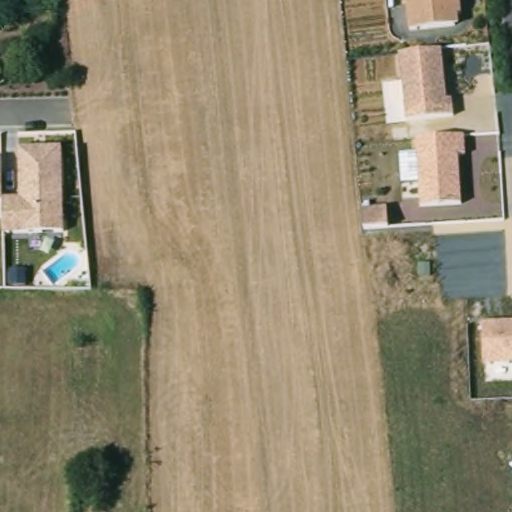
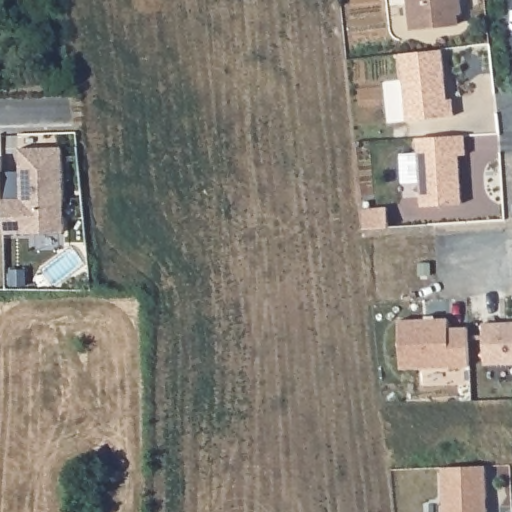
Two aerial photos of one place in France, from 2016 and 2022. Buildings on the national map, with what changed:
unchanged [(459,19),(459,28),(410,31),(407,0),(460,0),(462,19),(459,19)]
unchanged [(401,55),(440,52),(446,101),(452,101),(452,120),(408,124),(401,55)]
unchanged [(419,140),(466,137),(467,155),(458,155),(461,205),(424,209),(419,140)]
unchanged [(1,158),(3,198),(20,197),(19,147),(63,144),(64,234),(2,235),(1,200),(0,200),(0,158),(1,158)]
new [(449,320),(449,329),(468,329),(470,368),(401,370),(399,322),(449,320)]
unchanged [(484,323),(512,321),(512,364),(487,365),(484,323)]
new [(486,467),(488,512),(444,512),(442,469),(486,467)]

